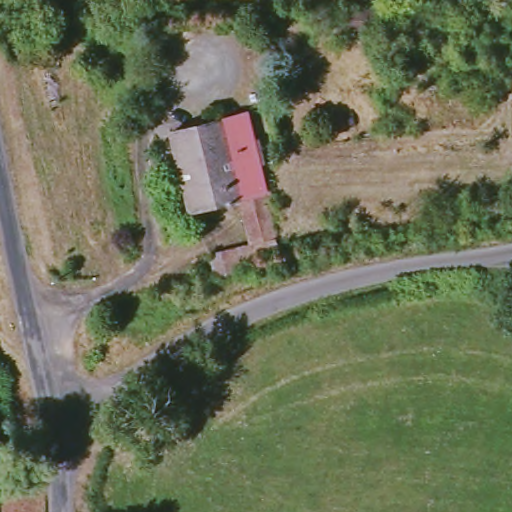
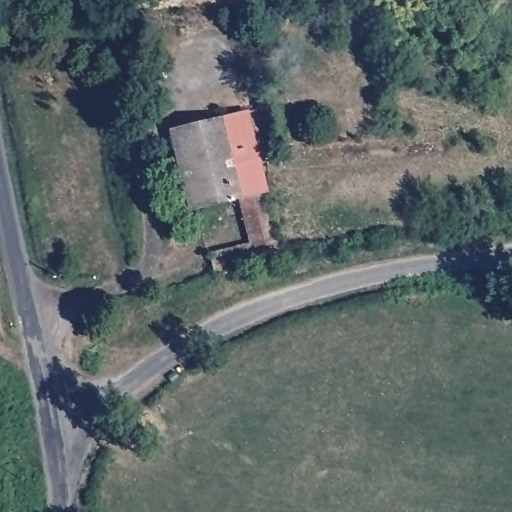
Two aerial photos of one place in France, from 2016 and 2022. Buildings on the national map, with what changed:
unchanged [(248,118),(271,192),(199,217),(187,182),(177,141),(185,138),(248,118)]

